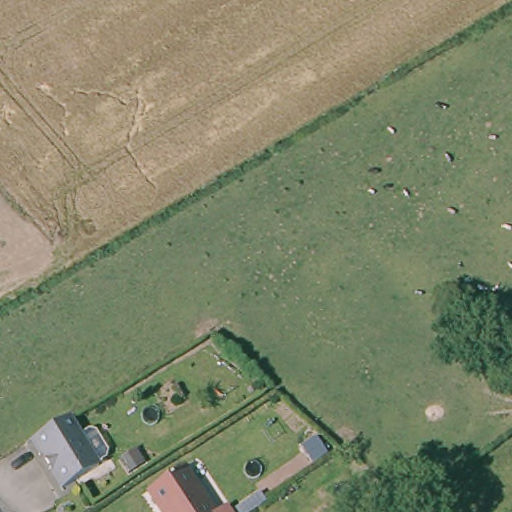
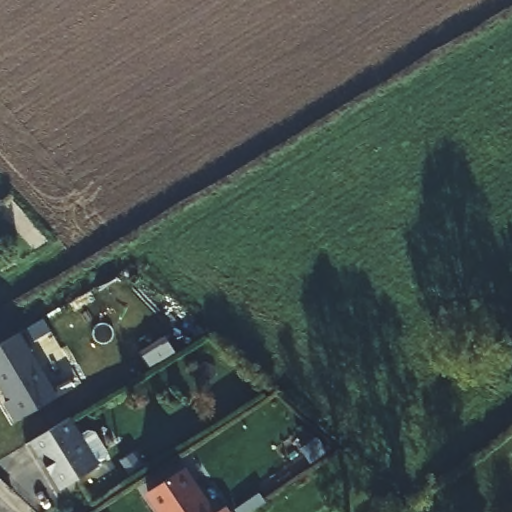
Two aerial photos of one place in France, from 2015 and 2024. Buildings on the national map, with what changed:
new [(60,392),(18,417),(6,398),(11,395),(0,377),(0,339),(20,327),(60,392)]
unchanged [(31,439),(70,414),(100,463),(61,489),(31,439)]
unchanged [(187,465),(216,511),(225,507),(228,512),(157,512),(145,493),(187,465)]

